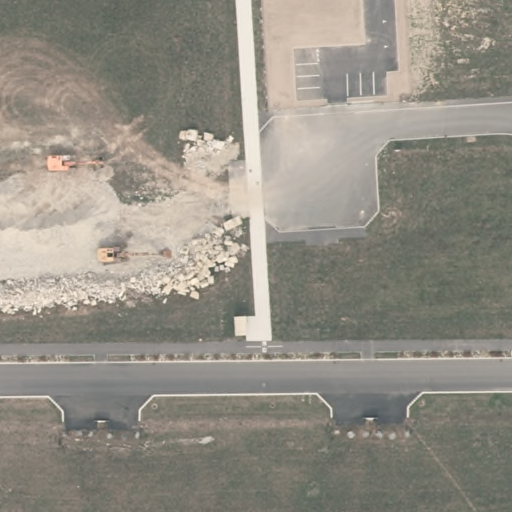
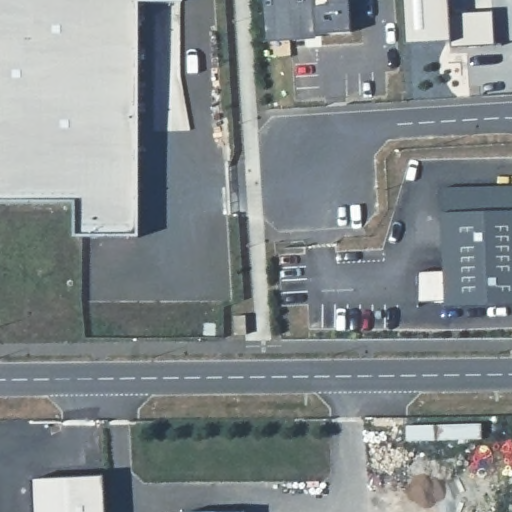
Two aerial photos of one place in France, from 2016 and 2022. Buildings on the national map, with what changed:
new [(136,239),(0,240),(0,0),(131,0),(136,239)]
new [(481,46),(451,48),(450,43),(405,45),(402,0),(448,0),(449,15),(493,11),(494,40),(495,46),(481,46)]
new [(104,475),(106,512),(32,512),(31,479),(104,475)]
unchanged [(235,512),(243,511),(243,512),(235,512)]

